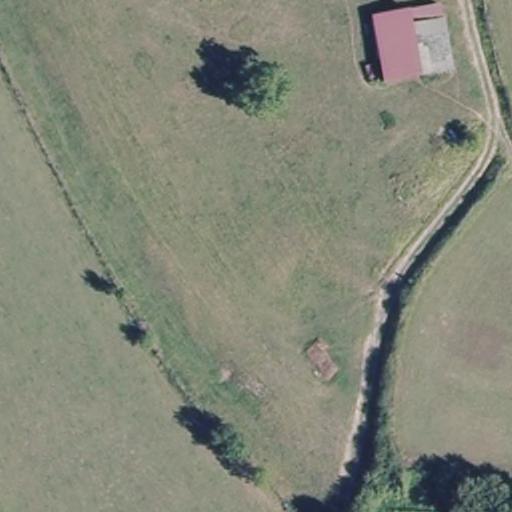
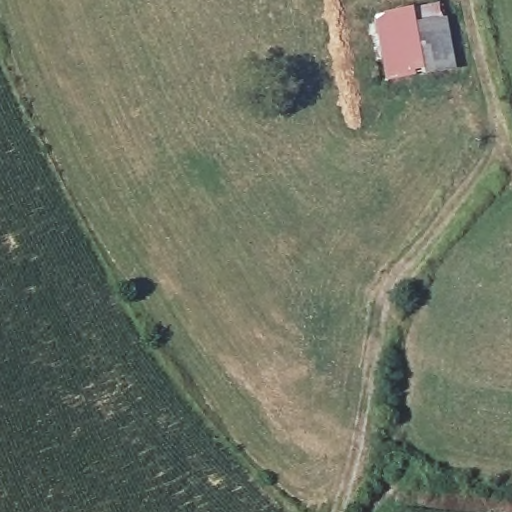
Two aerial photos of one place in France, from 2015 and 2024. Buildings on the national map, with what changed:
unchanged [(438,5),(453,71),(383,86),(366,21),(438,5)]

